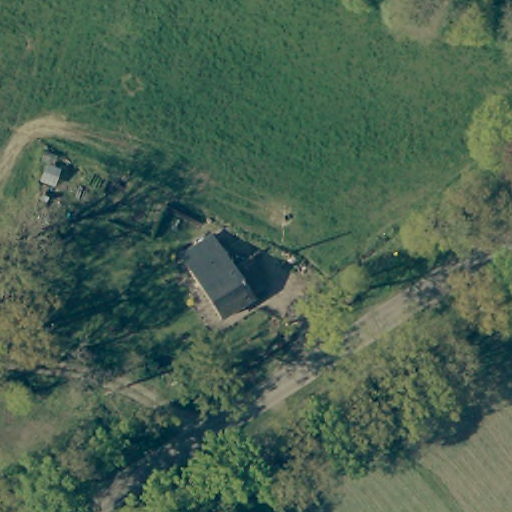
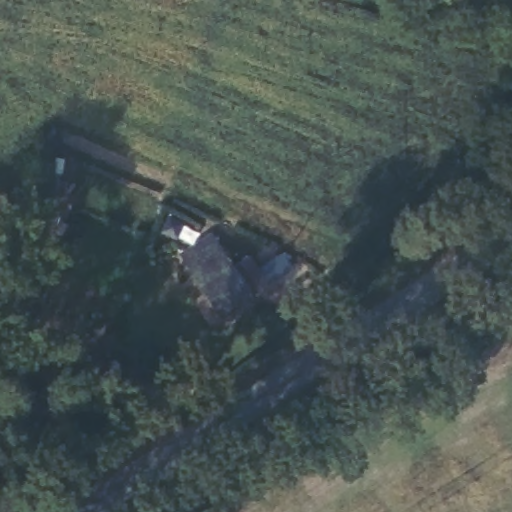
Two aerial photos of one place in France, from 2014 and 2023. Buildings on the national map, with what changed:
unchanged [(251,259),(267,284),(253,294),(254,298),(221,319),(181,257),(214,236),(236,268),(251,259)]

